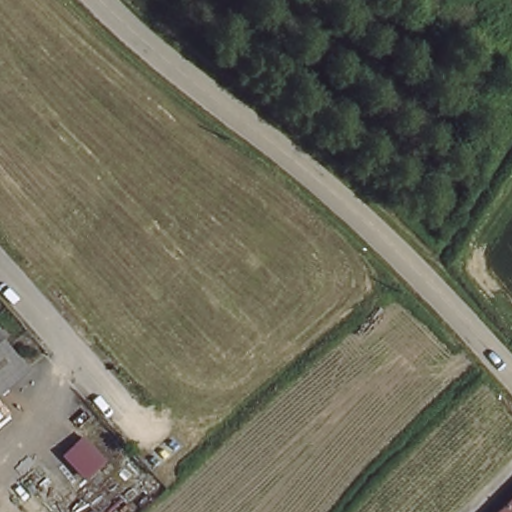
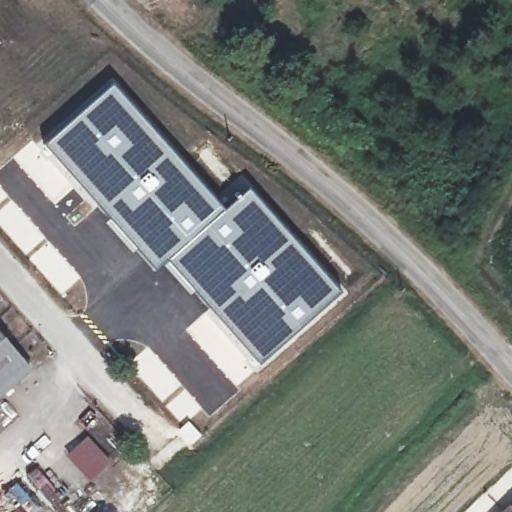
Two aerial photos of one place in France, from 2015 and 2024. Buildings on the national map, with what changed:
new [(111,86),(224,209),(248,188),(342,292),(258,367),(205,306),(162,265),(155,272),(105,222),(107,219),(43,146),(111,86)]
unchanged [(33,373),(0,401),(0,334),(33,373)]
unchanged [(511,505),(512,506),(512,512),(503,512),(511,505)]

